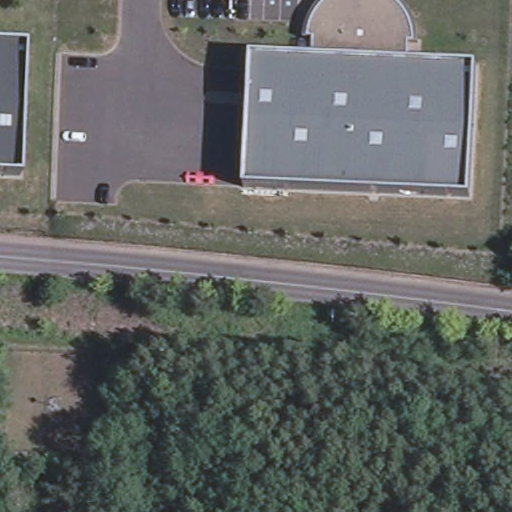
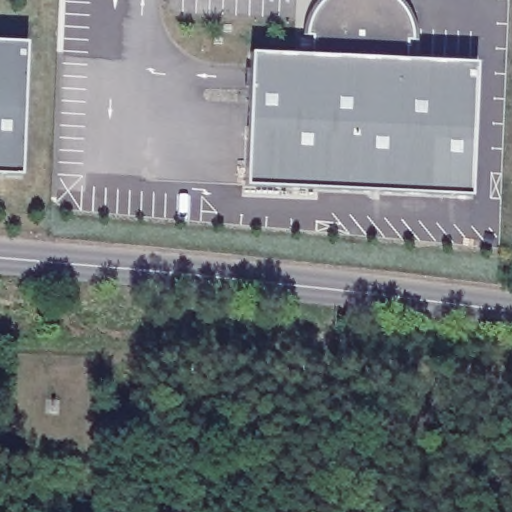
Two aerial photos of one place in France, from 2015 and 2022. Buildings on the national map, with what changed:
unchanged [(251,52),(313,54),(313,35),(306,34),(308,21),(313,11),(319,2),(322,0),(399,0),(404,5),(409,16),(413,28),(414,41),(407,40),(405,60),(474,63),(469,195),(245,184),(251,52)]
unchanged [(0,41),(25,42),(18,175),(0,174),(0,41)]

